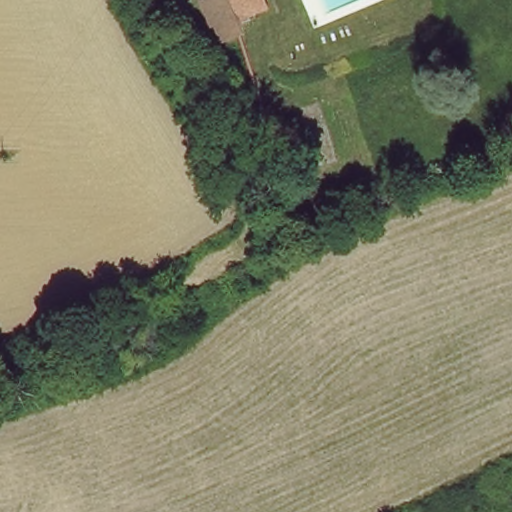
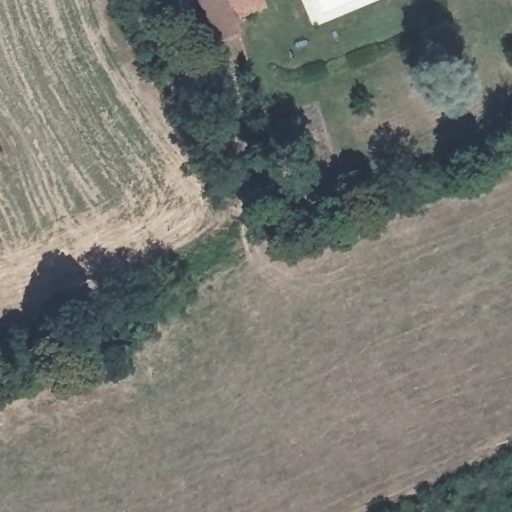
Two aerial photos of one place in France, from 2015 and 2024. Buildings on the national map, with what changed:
unchanged [(219,21),(210,0),(223,0),(230,17),(219,21)]

